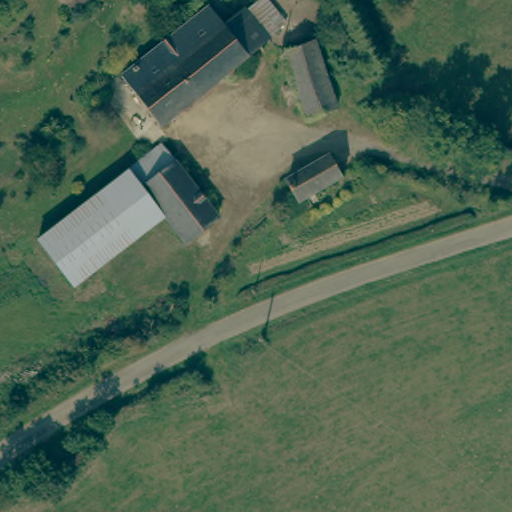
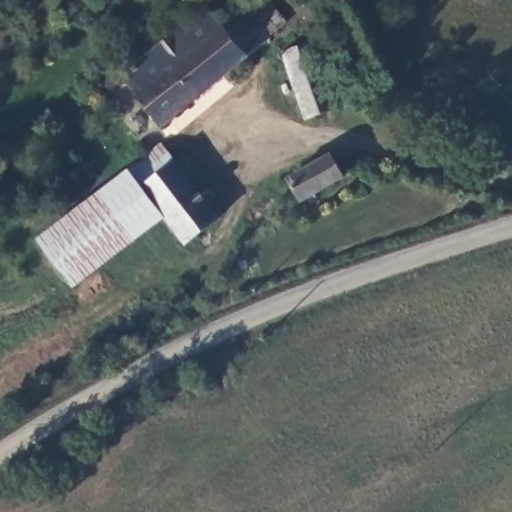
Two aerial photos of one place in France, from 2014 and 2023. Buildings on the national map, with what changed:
unchanged [(286,20),(157,126),(116,78),(171,30),(204,1),(222,22),(241,5),(245,9),(255,0),(269,0),(286,20)]
unchanged [(280,52),(313,42),(334,110),(300,121),(280,52)]
unchanged [(137,192),(143,188),(129,170),(155,149),(158,147),(214,224),(178,249),(161,225),(137,192)]
unchanged [(343,177),(298,201),(296,196),(286,177),(331,154),(340,172),(343,177)]
unchanged [(67,289),(31,237),(121,175),(129,170),(143,188),(137,192),(161,225),(67,289)]
unchanged [(174,313),(171,321),(168,323),(164,324),(160,323),(157,321),(155,317),(154,313),(155,310),(158,307),(160,306),(174,313)]

